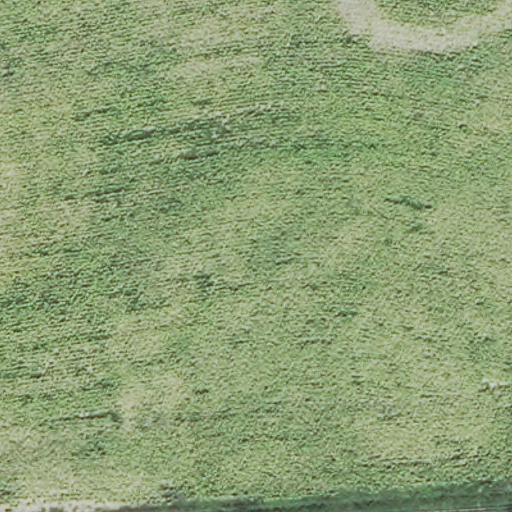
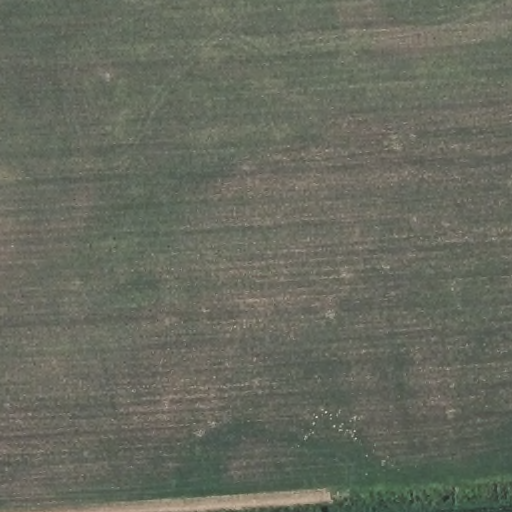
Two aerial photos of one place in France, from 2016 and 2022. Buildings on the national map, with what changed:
[]

